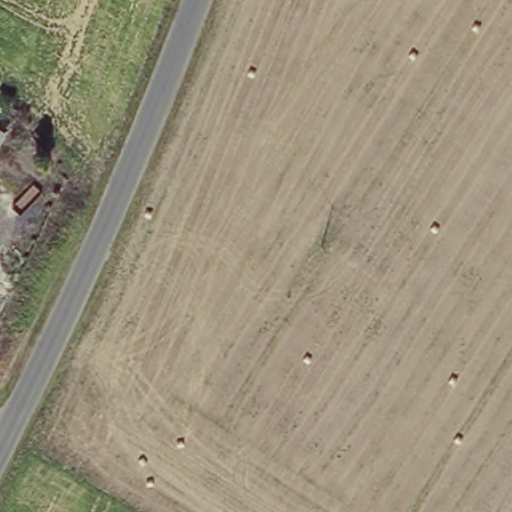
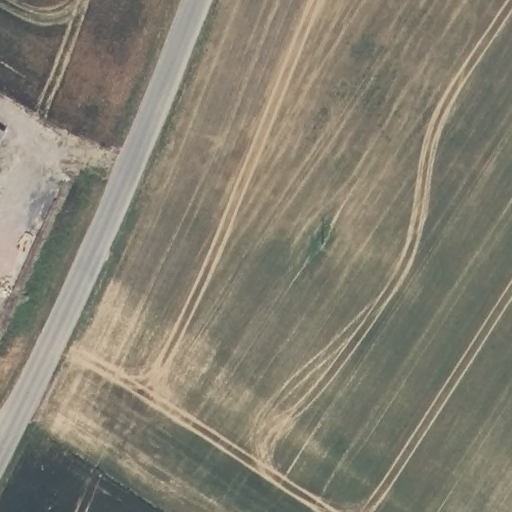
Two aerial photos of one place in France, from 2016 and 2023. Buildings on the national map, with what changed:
unchanged [(5,132),(0,140),(0,130),(5,132)]

